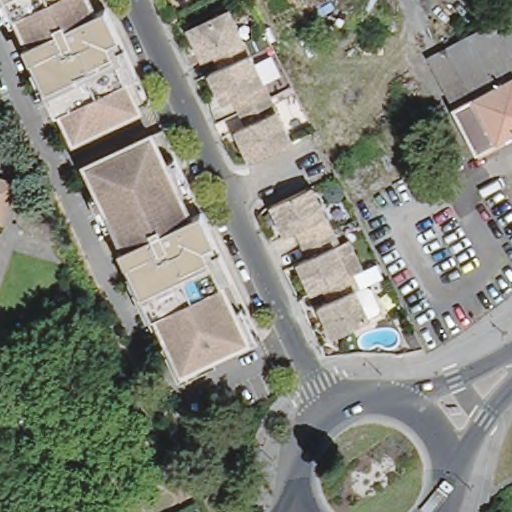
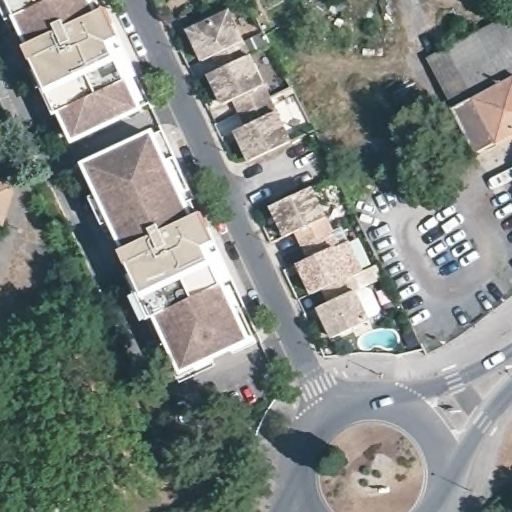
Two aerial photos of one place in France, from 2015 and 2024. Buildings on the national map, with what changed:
unchanged [(36,80),(26,59),(31,57),(22,37),(25,36),(19,22),(11,26),(0,3),(0,0),(95,0),(96,2),(100,0),(107,15),(134,71),(145,96),(71,130),(64,127),(53,104),(41,77),(36,80)]
unchanged [(199,55),(188,32),(229,13),(249,56),(219,70),(213,57),(206,61),(203,62),(199,55)]
unchanged [(454,110),(472,100),(446,50),(479,33),(507,17),(512,29),(512,135),(477,153),(454,110)]
unchanged [(429,60),(446,50),(472,100),(454,110),(429,60)]
unchanged [(219,96),(209,75),(219,70),(249,56),(269,99),(239,113),(233,99),(226,102),(223,104),(219,96)]
unchanged [(239,129),(246,126),(239,113),(269,99),(290,142),(250,161),(239,138),(235,131),(239,129)]
unchanged [(191,220),(196,217),(203,232),(253,338),(179,373),(142,296),(136,298),(126,277),(117,258),(120,257),(114,243),(107,246),(87,205),(92,202),(82,181),(84,172),(158,137),(189,204),(185,206),(191,220)]
unchanged [(9,184),(16,186),(13,192),(2,225),(0,224),(0,181),(9,184)]
unchanged [(282,229),(271,206),(311,187),(332,231),(302,245),(296,232),(289,235),(286,237),(282,229)]
unchanged [(302,262),(309,258),(302,245),(332,231),(339,246),(335,247),(349,277),(323,288),(313,293),(302,271),(298,263),(302,262)]
unchanged [(323,306),(330,302),(323,288),(349,277),(353,275),(360,289),(356,291),(370,321),(334,337),(323,315),(319,307),(323,306)]
unchanged [(179,373),(168,376),(122,280),(126,277),(136,298),(142,296),(179,373)]

